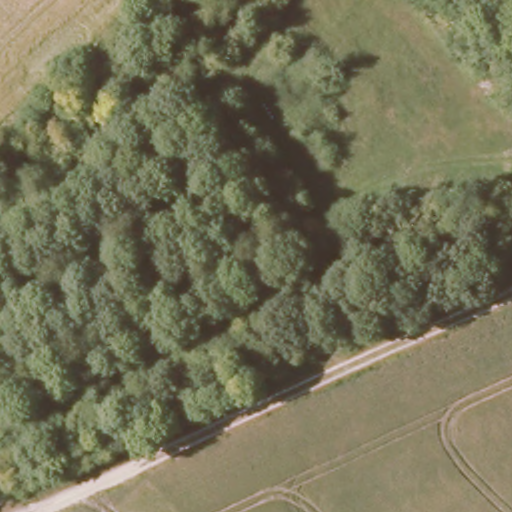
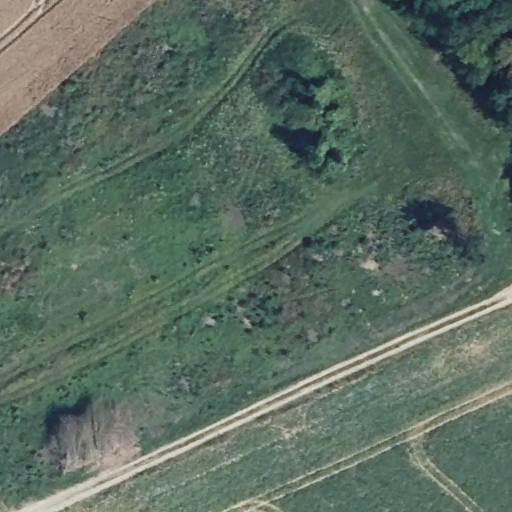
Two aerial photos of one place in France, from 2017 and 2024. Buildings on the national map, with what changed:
unchanged [(10,195),(5,201),(10,208),(0,217),(0,189),(3,187),(10,195)]

